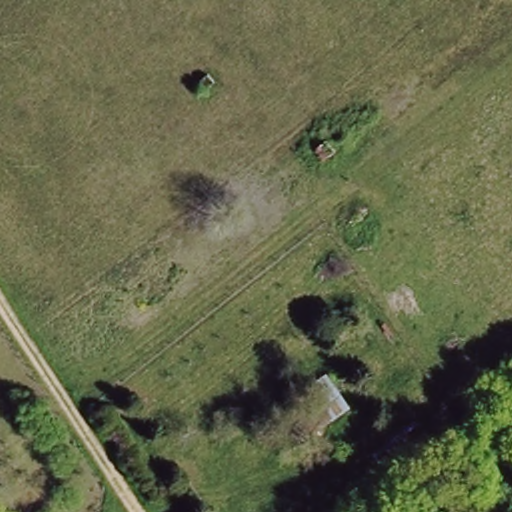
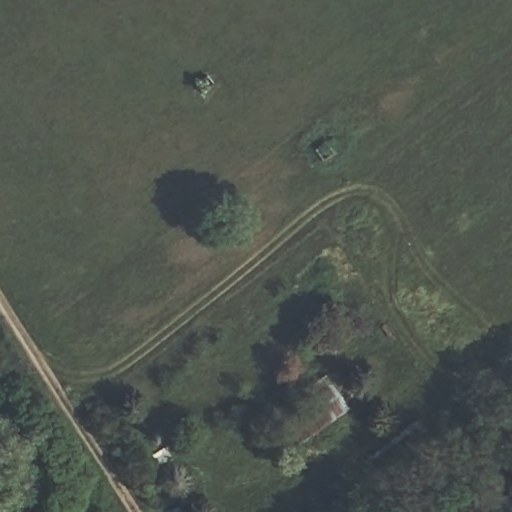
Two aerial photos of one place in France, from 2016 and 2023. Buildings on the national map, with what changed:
unchanged [(335,152),(325,161),(317,149),(327,142),(335,152)]
unchanged [(299,447),(273,405),(329,372),(351,409),(299,447)]

